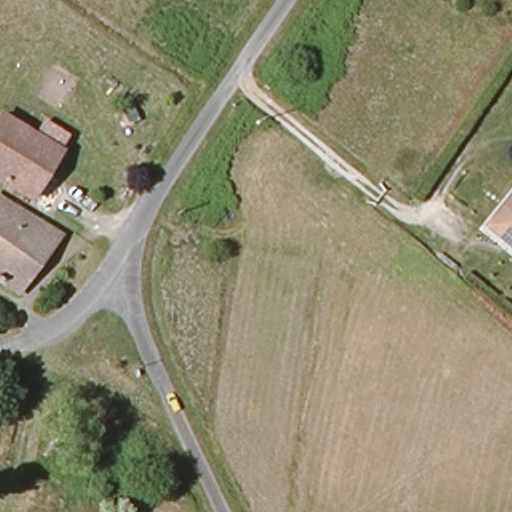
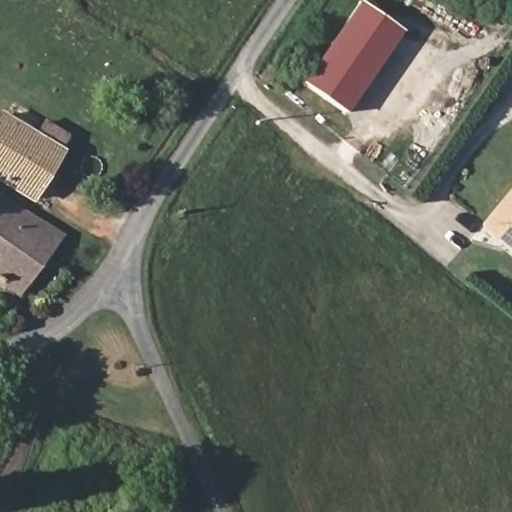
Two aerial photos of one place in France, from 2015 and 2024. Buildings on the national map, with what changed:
new [(359,0),(404,31),(347,114),(302,83),(359,0)]
unchanged [(0,185),(0,123),(2,119),(62,155),(29,202),(0,185)]
unchanged [(512,244),(487,224),(512,192),(512,244)]
unchanged [(0,286),(0,201),(65,239),(20,299),(0,286)]

